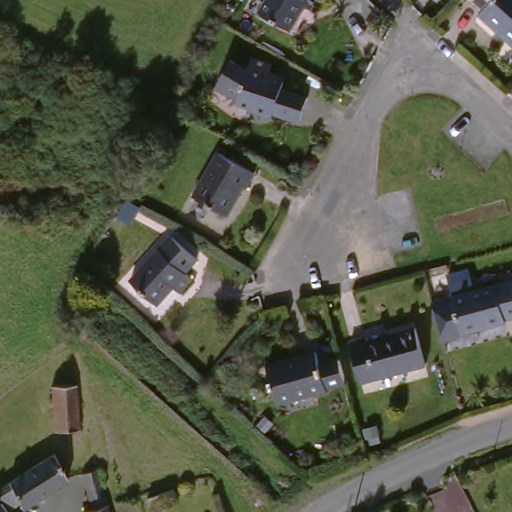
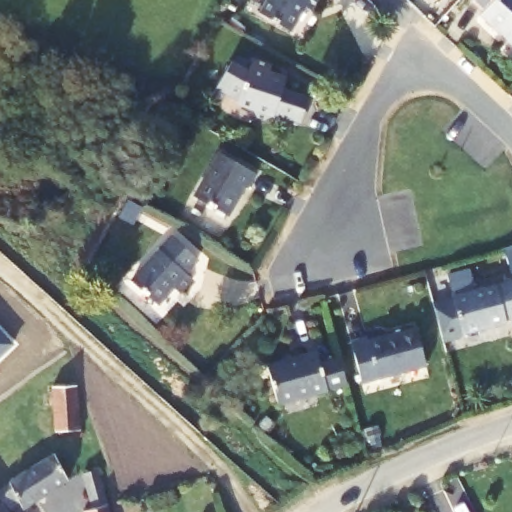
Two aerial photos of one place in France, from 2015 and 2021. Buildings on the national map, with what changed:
unchanged [(270,0),(316,0),(308,18),(301,15),(290,36),(260,19),(270,0)]
unchanged [(479,25),(481,22),(471,13),(482,0),(512,0),(512,55),(479,25)]
unchanged [(301,128),(271,121),(270,127),(250,124),(251,116),(234,112),(235,104),(214,90),(230,66),(243,74),(245,65),(263,69),(261,79),(282,85),(280,96),(308,104),(301,128)]
unchanged [(216,159),(251,178),(227,222),(192,202),(216,159)]
unchanged [(198,267),(186,281),(193,288),(183,298),(176,293),(160,310),(134,285),(170,243),(198,267)]
unchanged [(512,287),(512,327),(461,340),(451,303),(512,287)]
new [(0,357),(0,328),(15,344),(0,357)]
unchanged [(366,348),(411,338),(420,376),(359,390),(346,344),(364,340),(366,348)]
unchanged [(264,372),(315,361),(319,374),(338,370),(346,397),(274,414),(264,372)]
unchanged [(51,395),(73,392),(77,440),(53,444),(54,440),(55,439),(51,395)]
unchanged [(42,452),(66,477),(21,512),(0,512),(0,485),(1,485),(42,452)]
unchanged [(81,509),(73,478),(88,474),(98,507),(99,512),(74,512),(74,511),(81,509)]
unchanged [(170,507),(157,512),(152,512),(146,499),(166,492),(170,507)]

